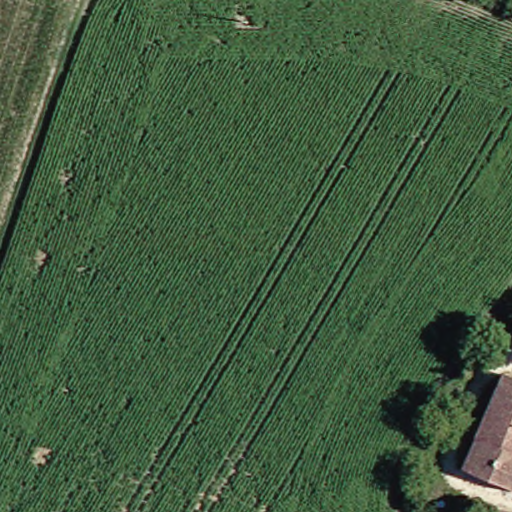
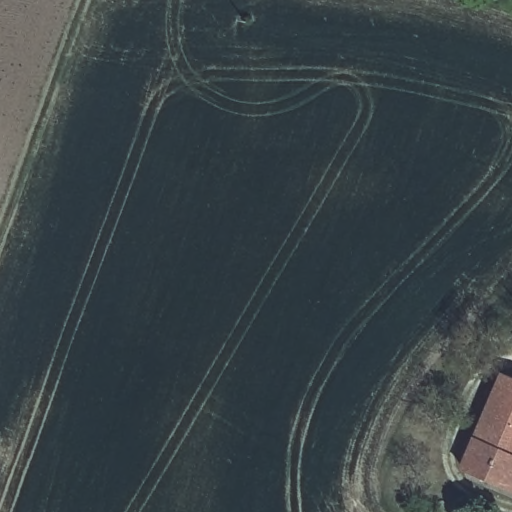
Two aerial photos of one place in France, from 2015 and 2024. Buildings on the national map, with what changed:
unchanged [(462,471),(501,378),(512,383),(512,494),(462,471)]

